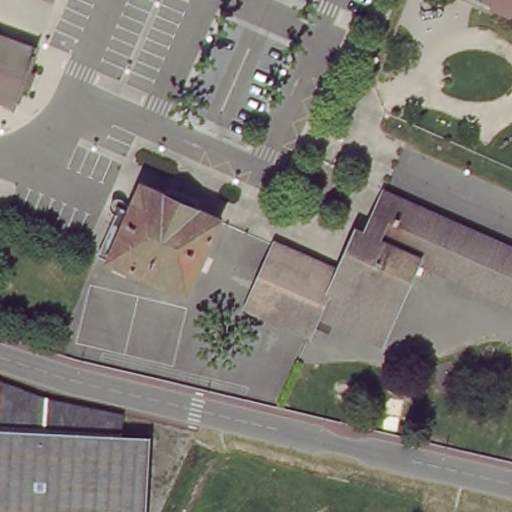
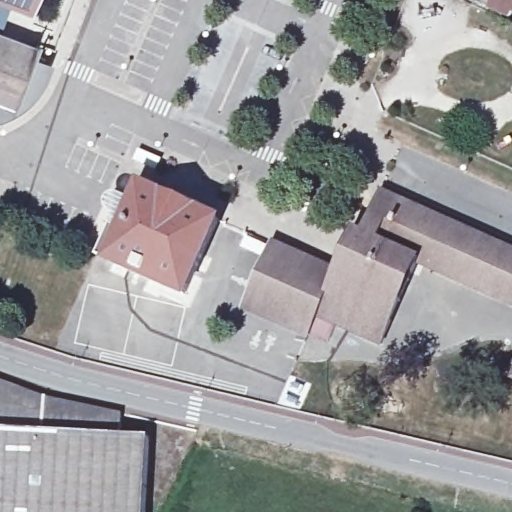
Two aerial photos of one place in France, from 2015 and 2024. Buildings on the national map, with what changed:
new [(26,19),(0,9),(0,0),(33,0),(26,19)]
unchanged [(492,0),(512,0),(512,9),(492,0)]
unchanged [(33,51),(10,110),(0,106),(0,38),(33,51)]
unchanged [(223,221),(189,295),(105,257),(123,216),(131,220),(146,185),(223,221)]
unchanged [(289,274),(299,252),(325,264),(341,271),(360,231),(367,234),(386,193),(480,234),(512,248),(512,300),(421,260),(384,343),(322,315),(331,294),(289,274)]
unchanged [(289,274),(331,294),(322,315),(313,334),(252,307),(277,249),(279,243),(292,249),(299,252),(289,274)]
unchanged [(45,400),(87,412),(124,422),(124,428),(154,430),(150,512),(0,512),(0,389),(45,400)]

